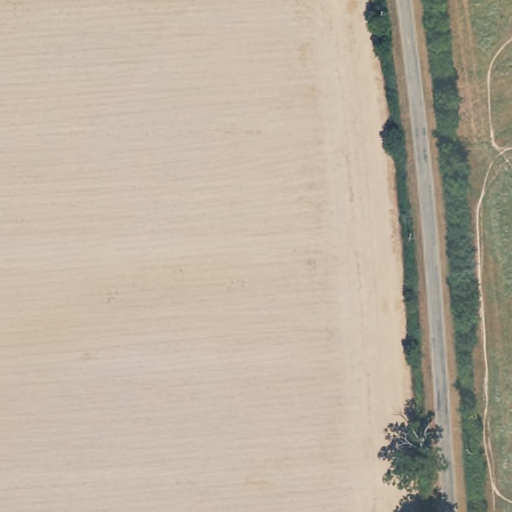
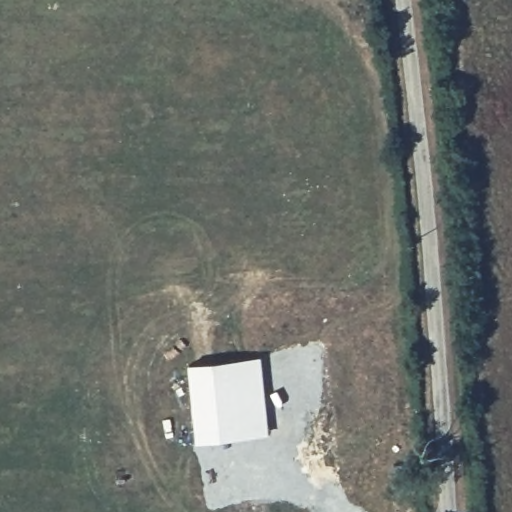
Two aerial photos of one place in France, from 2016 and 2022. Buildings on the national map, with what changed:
new [(195,443),(186,364),(260,355),(268,435),(195,443)]

